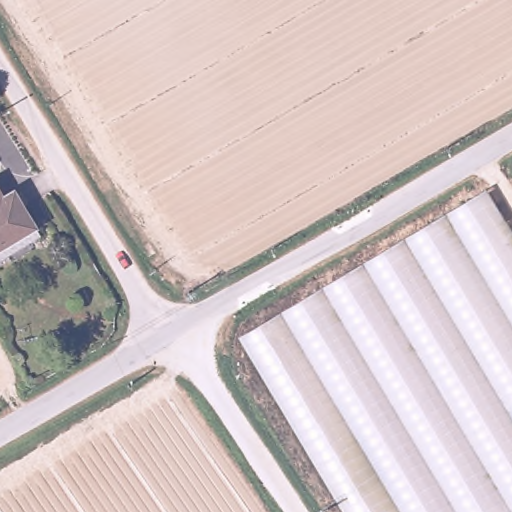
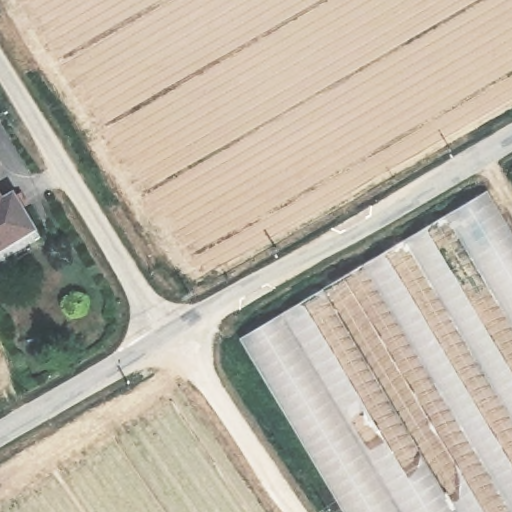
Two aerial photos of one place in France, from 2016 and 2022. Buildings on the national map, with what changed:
unchanged [(15,196),(25,190),(52,235),(0,266),(0,182),(4,180),(15,196)]
unchanged [(336,490),(245,338),(493,190),(512,222),(512,512),(349,512),(336,490)]

